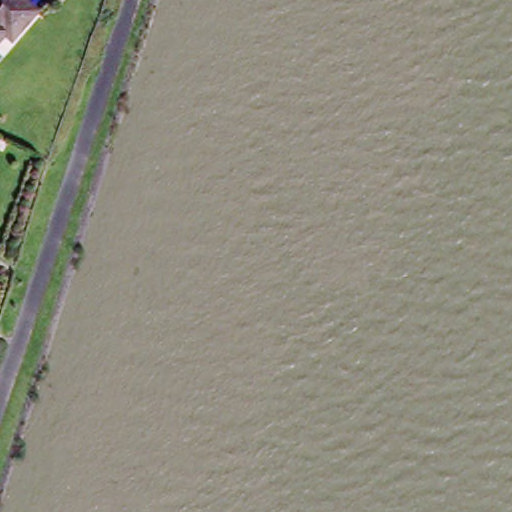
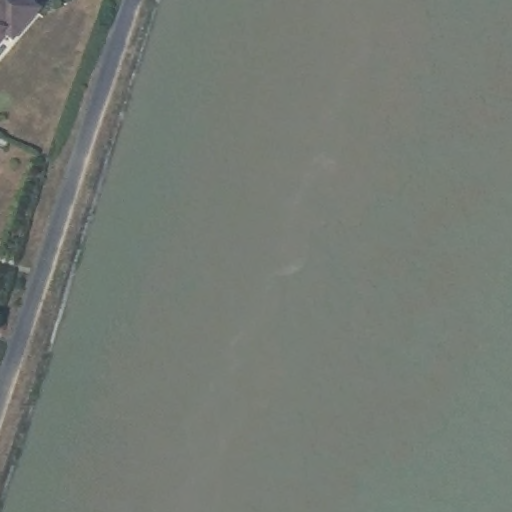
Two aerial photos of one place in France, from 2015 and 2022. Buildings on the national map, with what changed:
unchanged [(36,17),(10,41),(0,32),(0,0),(21,0),(36,17)]

